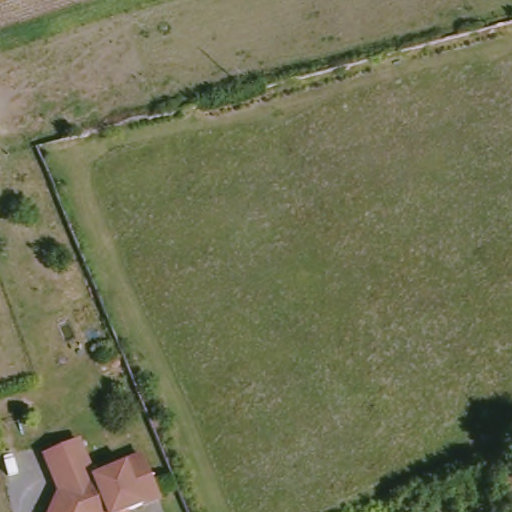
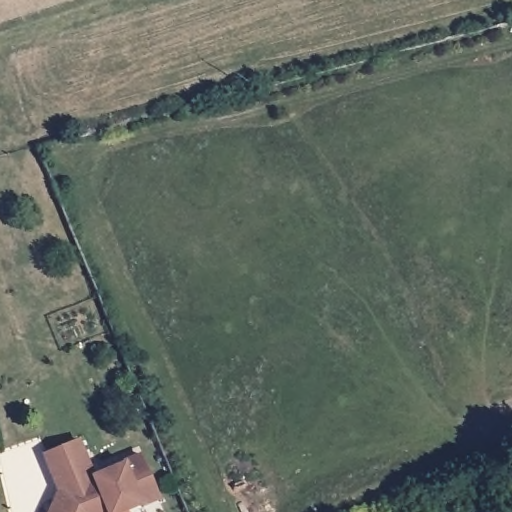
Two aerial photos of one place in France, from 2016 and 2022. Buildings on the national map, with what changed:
unchanged [(60,487),(45,452),(79,440),(92,474),(140,458),(157,494),(159,498),(144,504),(119,512),(48,512),(60,487)]

